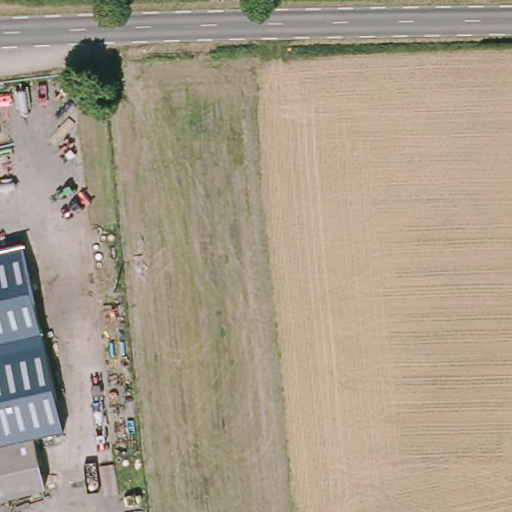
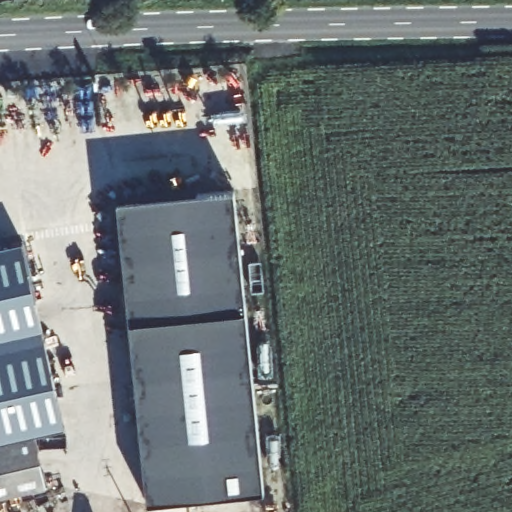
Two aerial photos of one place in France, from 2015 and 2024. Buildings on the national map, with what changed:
new [(235,187),(264,489),(147,501),(117,198),(235,187)]
unchanged [(67,421),(33,430),(47,477),(0,490),(0,242),(18,237),(67,421)]

